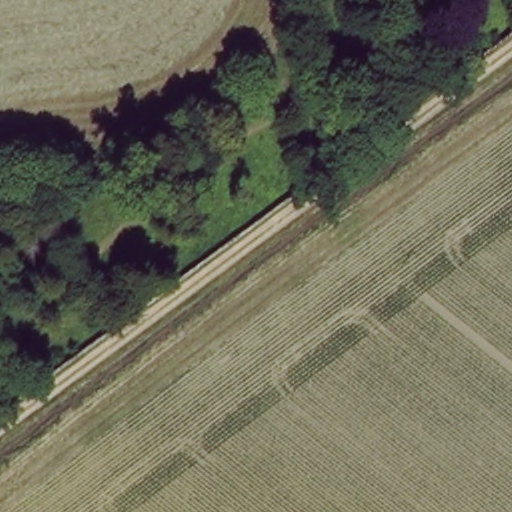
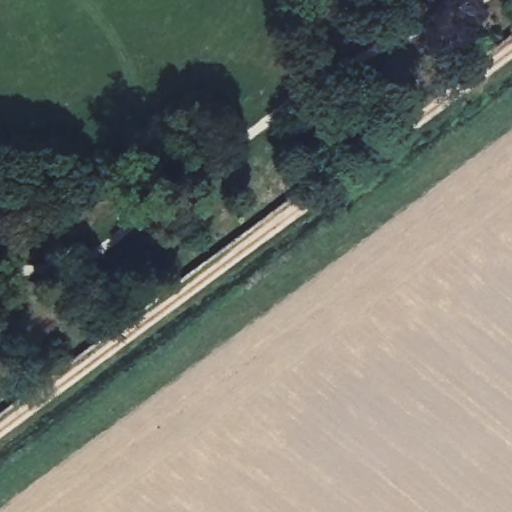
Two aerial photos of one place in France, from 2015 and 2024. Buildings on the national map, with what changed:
[]

